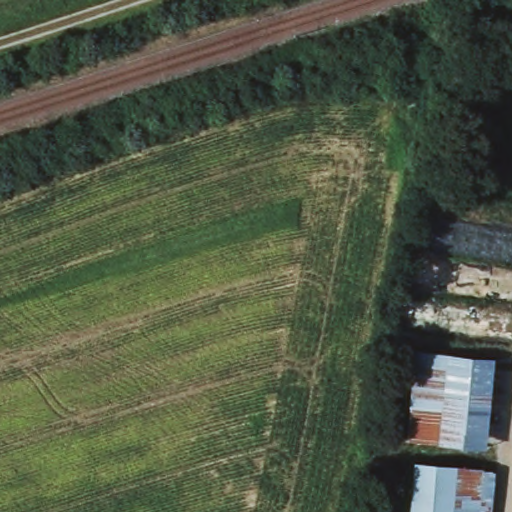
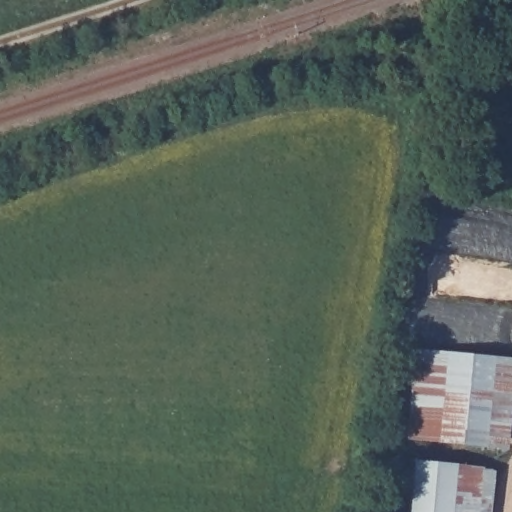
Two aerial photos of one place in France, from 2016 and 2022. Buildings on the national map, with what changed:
unchanged [(485,448),(406,439),(416,350),(493,358),(485,448)]
unchanged [(479,512),(413,512),(417,464),(482,468),(479,512)]

